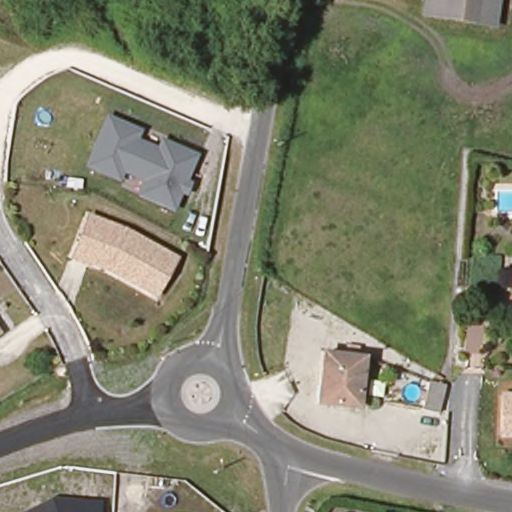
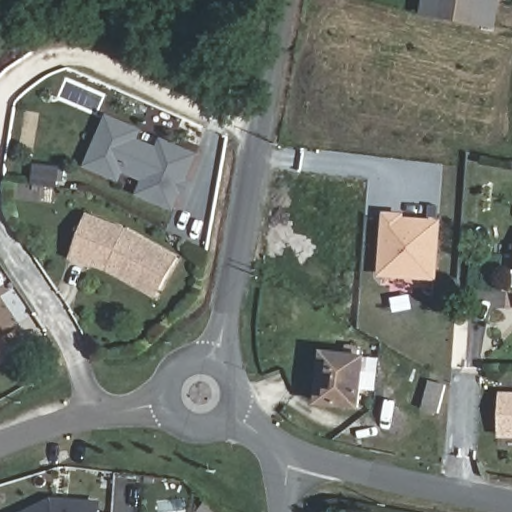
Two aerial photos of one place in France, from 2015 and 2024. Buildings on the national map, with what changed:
unchanged [(492,26),(421,15),(423,0),(497,0),(492,26)]
unchanged [(142,129),(139,138),(156,146),(160,137),(198,153),(187,179),(192,181),(188,196),(183,194),(175,211),(135,195),(142,180),(122,171),(119,181),(84,166),(106,115),(142,129)]
unchanged [(72,255),(89,215),(125,230),(175,259),(155,295),(107,266),(90,259),(89,261),(72,255)]
new [(440,251),(435,251),(435,254),(438,254),(436,282),(377,278),(381,215),(442,220),(440,251)]
unchanged [(365,409),(325,405),(330,354),(353,356),(355,346),(364,347),(363,357),(370,358),(365,409)]
unchanged [(440,390),(434,409),(425,406),(431,388),(440,390)]
unchanged [(512,439),(499,440),(501,392),(512,392),(512,439)]
unchanged [(101,499),(101,512),(21,512),(51,496),(101,499)]

